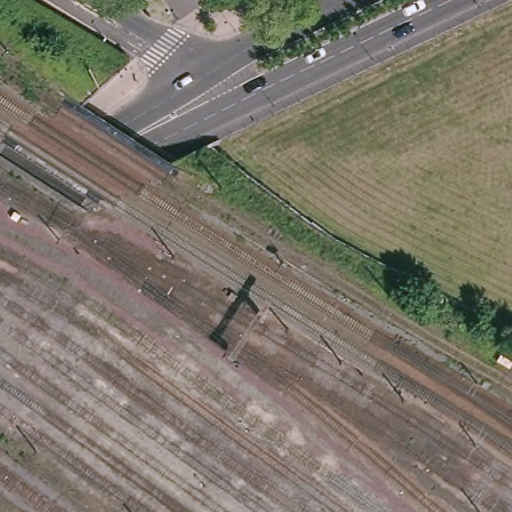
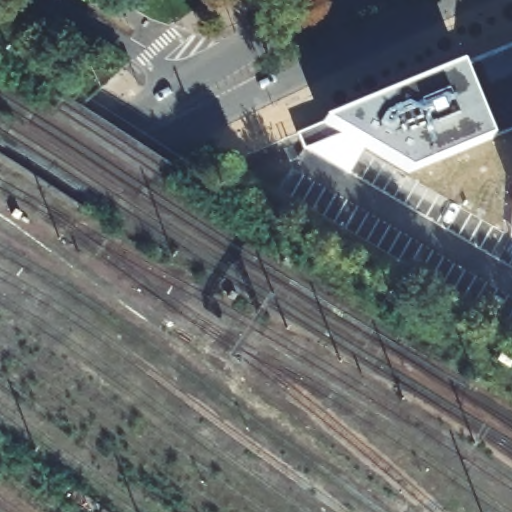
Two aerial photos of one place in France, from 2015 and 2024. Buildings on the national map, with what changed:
new [(512,39),(512,123),(412,165),(344,126),(306,141),(300,125),(512,39)]
new [(303,149),(294,129),(300,125),(306,141),(344,126),(369,141),(349,175),(303,149)]

